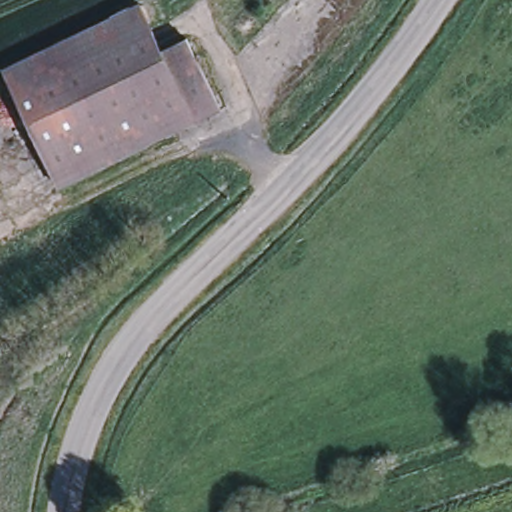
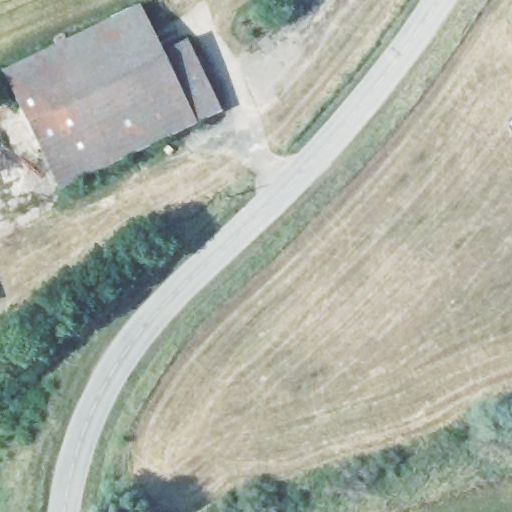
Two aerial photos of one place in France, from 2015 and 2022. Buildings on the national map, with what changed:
unchanged [(60,188),(5,70),(141,6),(163,52),(197,121),(60,188)]
unchanged [(187,40),(221,109),(197,121),(163,52),(187,40)]

